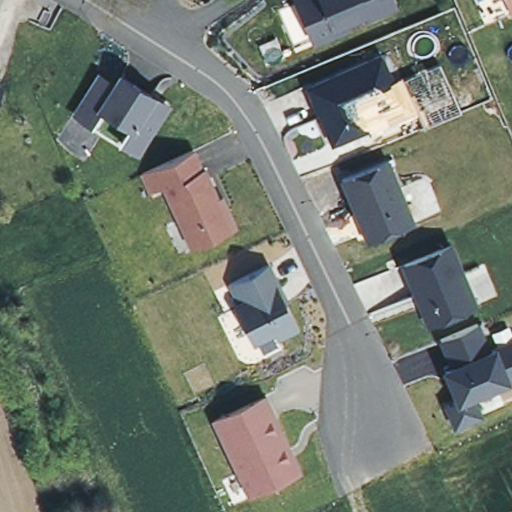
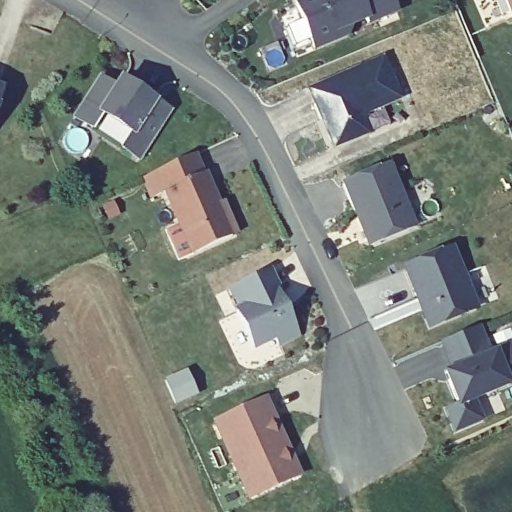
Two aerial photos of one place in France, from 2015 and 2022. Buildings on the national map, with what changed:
unchanged [(368,29),(365,19),(348,26),(352,40),(310,54),(292,0),(392,0),(398,15),(368,29)]
unchanged [(397,101),(360,117),(366,139),(328,151),(306,91),(382,60),(397,101)]
unchanged [(100,77),(113,86),(120,77),(156,99),(172,112),(142,161),(123,150),(134,135),(104,115),(93,129),(75,118),(100,77)]
unchanged [(1,90),(0,92),(0,89),(1,90)]
unchanged [(199,153),(237,239),(179,265),(165,234),(177,227),(163,192),(147,200),(138,181),(199,153)]
unchanged [(395,164),(418,227),(370,246),(343,183),(395,164)]
unchanged [(457,245),(482,310),(428,327),(402,268),(457,245)]
unchanged [(281,350),(276,340),(252,352),(227,290),(273,267),(305,340),(281,350)]
unchanged [(490,355),(512,346),(512,384),(472,400),(481,420),(455,431),(446,410),(457,405),(445,373),(452,370),(440,342),(477,327),(490,355)]
unchanged [(213,423),(268,399),(300,477),(248,501),(213,423)]

